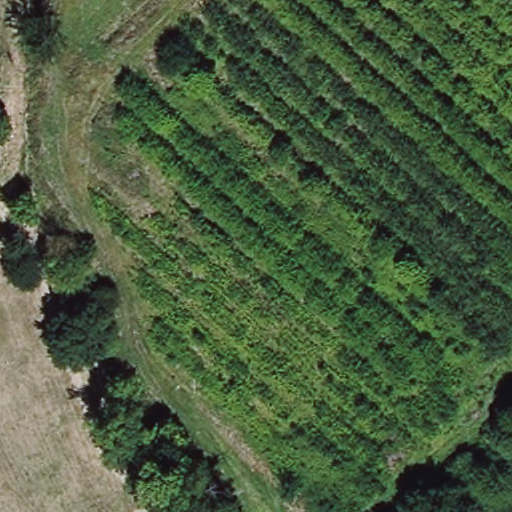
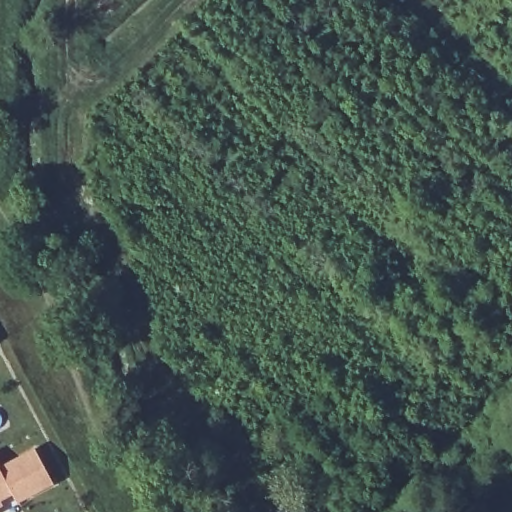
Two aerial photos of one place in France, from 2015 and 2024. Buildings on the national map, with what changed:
new [(0,465),(35,447),(53,484),(18,502),(13,493),(0,500),(0,464),(0,465)]
new [(5,509),(0,512),(0,500),(5,509)]

